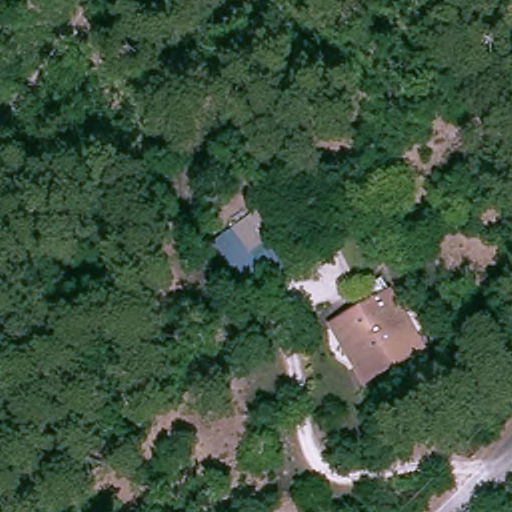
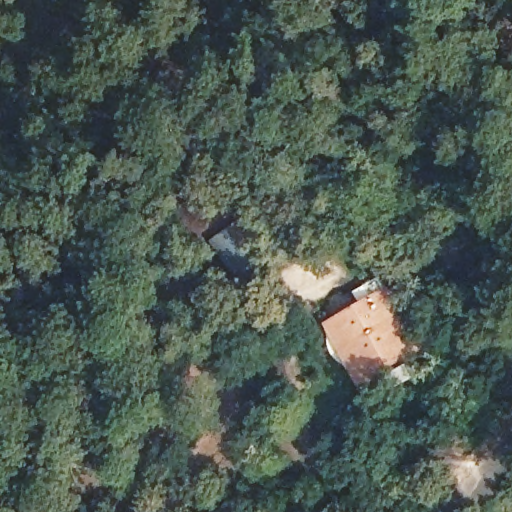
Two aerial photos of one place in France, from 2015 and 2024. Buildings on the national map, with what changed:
unchanged [(385,282),(424,339),(364,378),(325,322),(385,282)]

